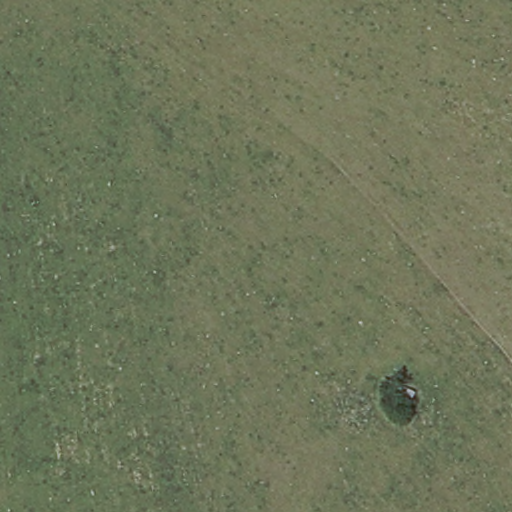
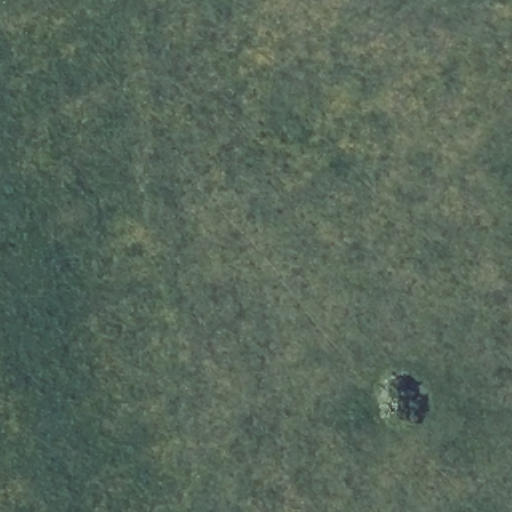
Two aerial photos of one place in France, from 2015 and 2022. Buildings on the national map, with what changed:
unchanged [(416,390),(410,403),(396,398),(402,385),(416,390)]

